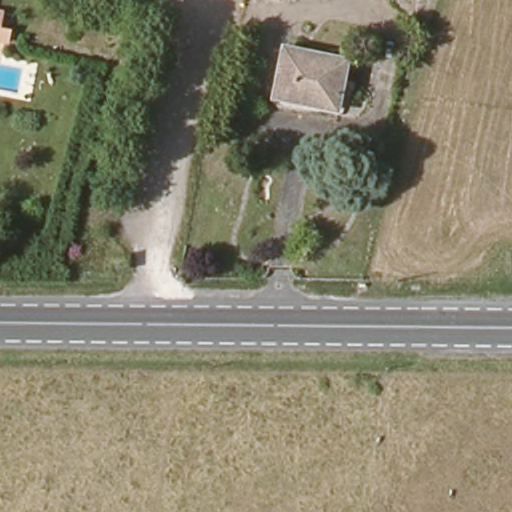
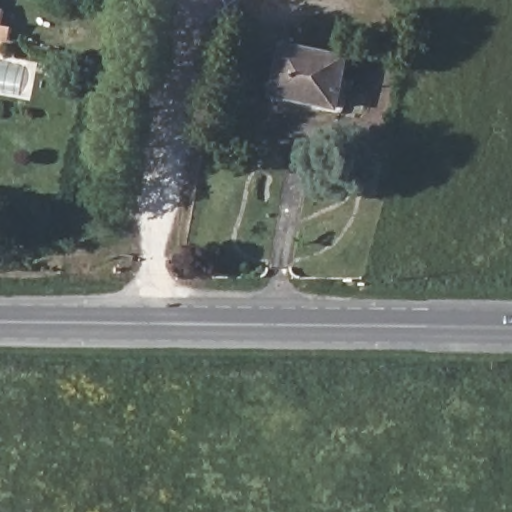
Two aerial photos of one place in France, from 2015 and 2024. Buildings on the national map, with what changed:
unchanged [(0,29),(0,13),(3,13),(0,29)]
unchanged [(10,46),(0,44),(0,29),(13,33),(10,46)]
unchanged [(334,106),(290,96),(285,105),(274,102),(286,46),(344,59),(334,106)]

